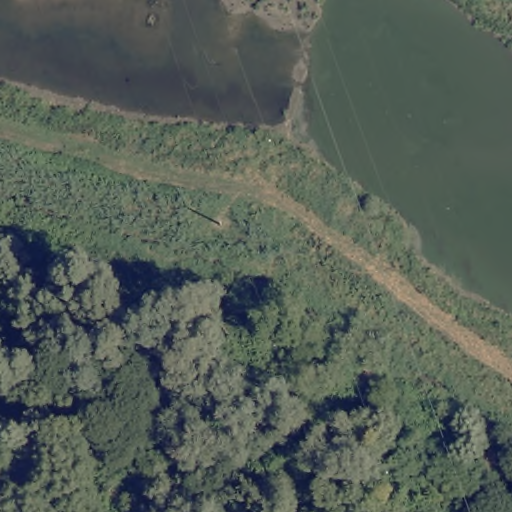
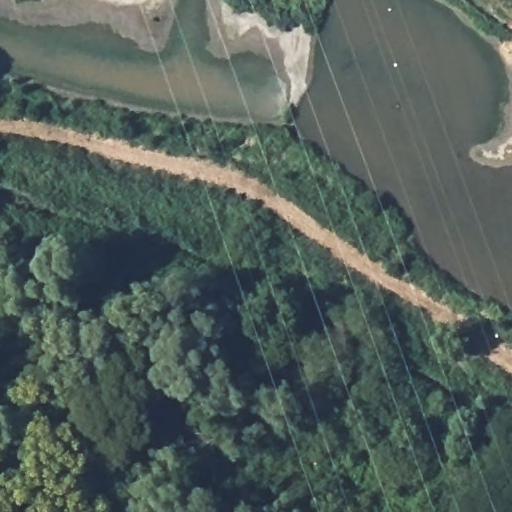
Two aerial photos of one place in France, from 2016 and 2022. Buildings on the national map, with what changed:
[]

